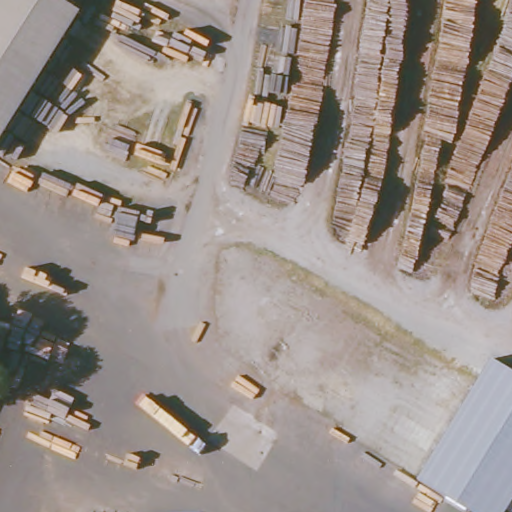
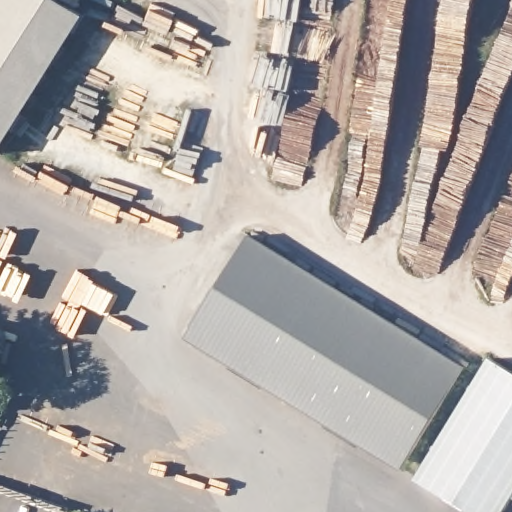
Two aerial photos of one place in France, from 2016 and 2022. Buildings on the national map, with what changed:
unchanged [(0,133),(0,0),(68,0),(81,8),(0,133)]
new [(187,337),(249,236),(464,367),(403,470),(187,337)]
unchanged [(505,512),(470,512),(416,478),(491,356),(512,369),(512,501),(505,512)]

